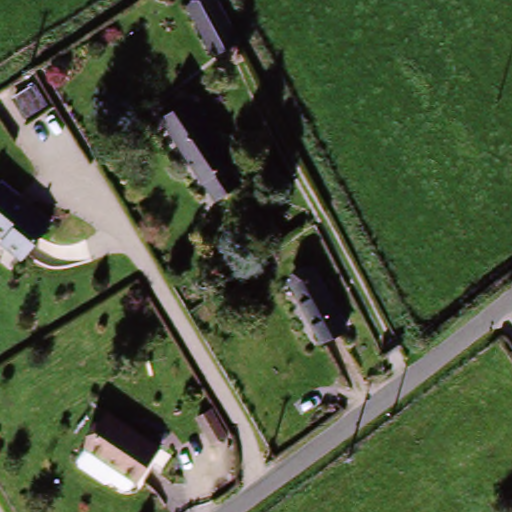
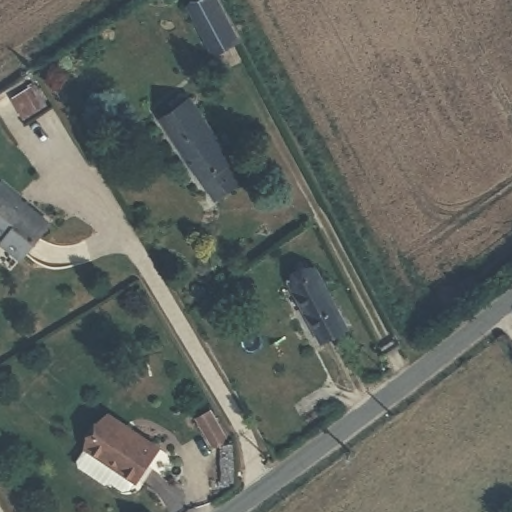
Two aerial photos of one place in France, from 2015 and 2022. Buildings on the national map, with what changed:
unchanged [(201,47),(177,0),(211,0),(228,33),(201,47)]
unchanged [(215,203),(177,140),(164,118),(193,100),(206,122),(243,185),(215,203)]
unchanged [(0,243),(2,238),(0,237),(0,186),(2,183),(48,225),(15,259),(0,245),(0,243)]
unchanged [(316,270),(347,326),(322,340),(291,283),(316,270)]
unchanged [(136,480),(84,448),(106,412),(157,445),(136,480)]

